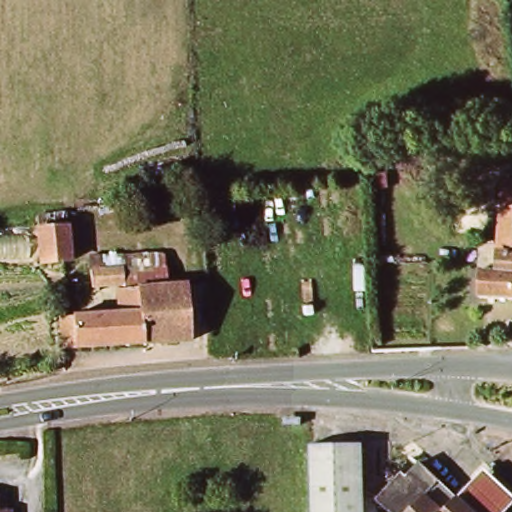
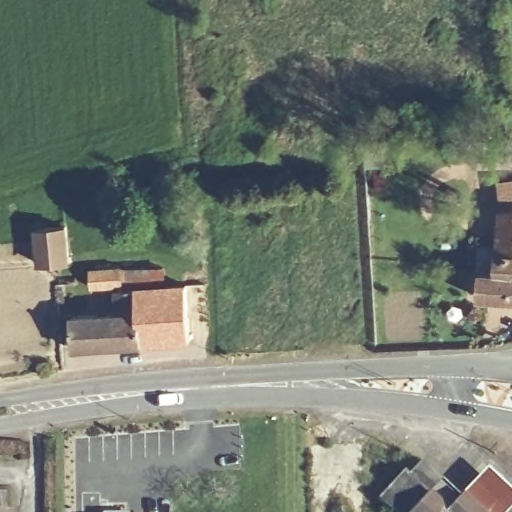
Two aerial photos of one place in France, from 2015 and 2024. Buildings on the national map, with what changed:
unchanged [(512,175),(512,209),(498,210),(499,175),(512,175)]
unchanged [(479,271),(493,272),(497,251),(498,210),(512,209),(512,302),(478,299),(479,271)]
unchanged [(67,225),(70,261),(61,262),(40,265),(37,229),(67,225)]
demolished [(34,260),(0,261),(0,238),(31,238),(34,260)]
unchanged [(168,252),(169,285),(128,286),(125,270),(93,271),(93,254),(168,252)]
unchanged [(72,316),(119,313),(119,288),(94,287),(93,275),(93,271),(125,270),(128,286),(169,285),(185,285),(191,341),(74,348),(61,350),(59,317),(72,316)]
demolished [(312,447),(363,445),(366,512),(315,512),(312,447)]
unchanged [(506,512),(388,512),(374,499),(401,470),(407,475),(419,461),(457,496),(484,470),(512,495),(512,506),(506,512)]

